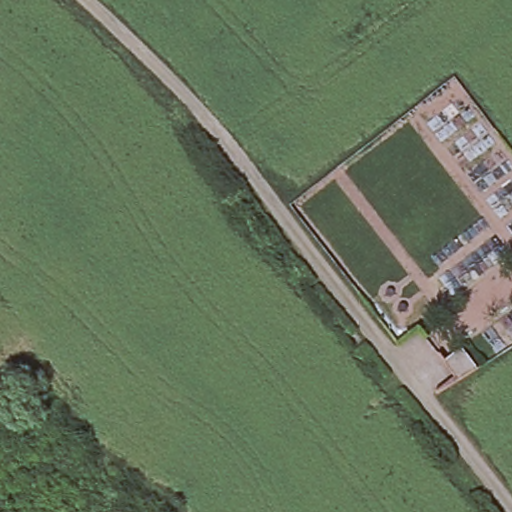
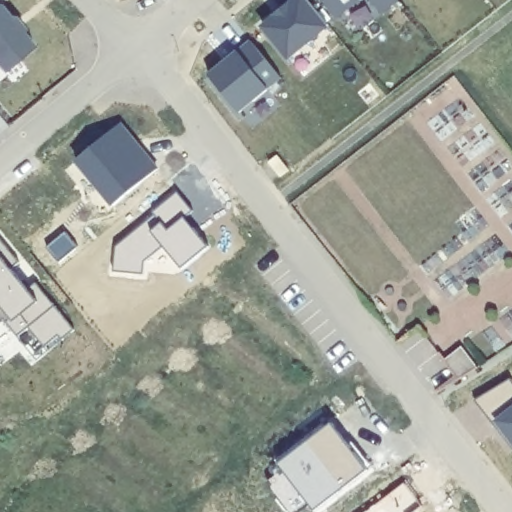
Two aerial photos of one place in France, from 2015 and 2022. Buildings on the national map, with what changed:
new [(293,0),(308,0),(328,26),(288,58),(262,24),(293,0)]
new [(358,0),(337,17),(323,0),(358,0)]
new [(370,0),(399,0),(382,14),(370,0)]
new [(12,18),(15,16),(26,30),(23,33),(35,47),(4,72),(0,68),(0,4),(12,18)]
new [(250,39),(280,79),(237,112),(207,75),(250,39)]
new [(135,141),(145,154),(159,170),(115,207),(77,161),(122,125),(135,141)]
new [(117,248),(155,215),(153,213),(178,192),(194,212),(185,220),(192,230),(195,228),(210,247),(183,270),(165,247),(146,263),(145,275),(115,272),(117,248)]
new [(65,233),(75,245),(60,260),(47,248),(65,233)]
new [(20,264),(12,270),(29,291),(37,284),(75,331),(63,341),(60,337),(45,348),(30,329),(18,338),(2,318),(0,321),(0,239),(20,264)]
unchanged [(442,357),(460,345),(477,368),(459,380),(442,357)]
new [(512,383),(512,448),(474,400),(510,381),(512,383)]
new [(334,424),(370,471),(323,508),(287,460),(334,424)]
new [(286,471),(281,465),(287,460),(323,508),(317,512),(312,506),(304,512),(292,512),(270,483),(286,471)]
new [(405,483),(422,505),(414,512),(367,512),(405,483)]

